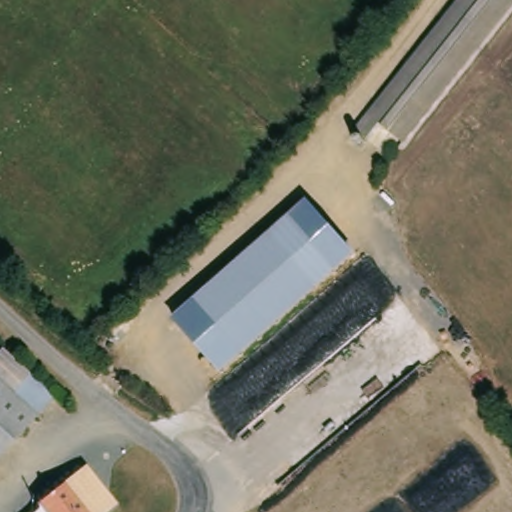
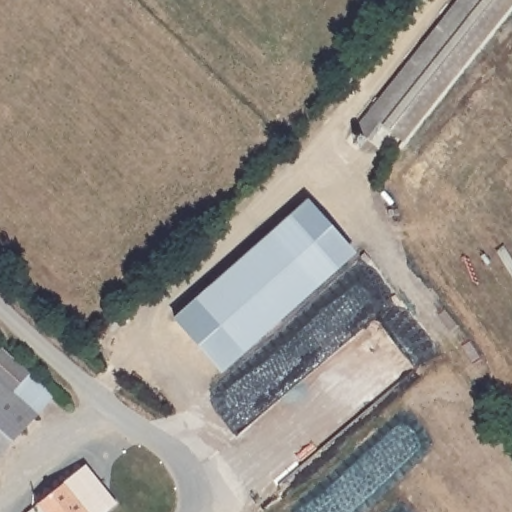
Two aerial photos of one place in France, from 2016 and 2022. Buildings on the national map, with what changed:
unchanged [(367,119),(462,0),(512,0),(512,9),(402,147),(379,129),(367,144),(355,135),(367,119)]
unchanged [(307,202),(355,261),(214,372),(165,320),(307,202)]
unchanged [(37,372),(32,377),(52,399),(39,413),(0,452),(0,354),(7,347),(37,372)]
unchanged [(117,503),(106,512),(85,512),(62,484),(85,465),(117,503)]
unchanged [(62,484),(85,512),(44,512),(37,504),(62,484)]

